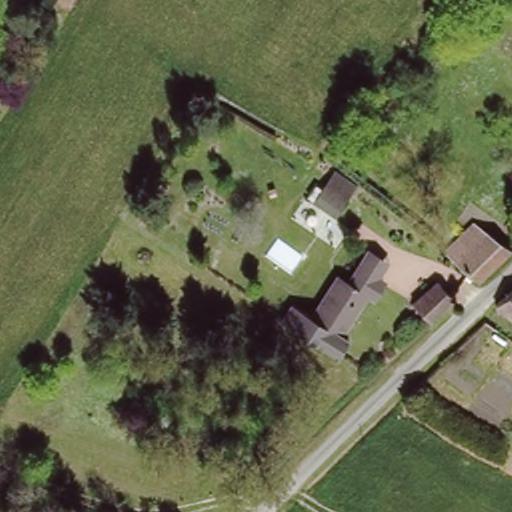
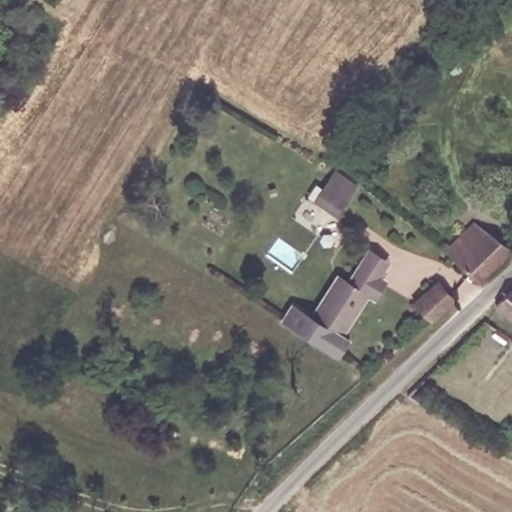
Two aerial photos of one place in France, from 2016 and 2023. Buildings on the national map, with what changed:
unchanged [(373,141),(383,150),(370,164),(360,156),(373,141)]
unchanged [(313,200),(334,169),(357,185),(335,215),(313,200)]
unchanged [(445,256),(477,226),(512,249),(512,254),(479,284),(445,256)]
unchanged [(370,291),(352,279),(369,248),(393,264),(387,275),(392,278),(380,302),(368,295),(370,291)]
unchanged [(342,333),(307,311),(325,283),(333,270),(349,280),(368,292),(342,333)]
unchanged [(432,324),(413,304),(437,282),(456,302),(432,324)]
unchanged [(495,307),(512,292),(512,321),(499,311),(495,307)]

